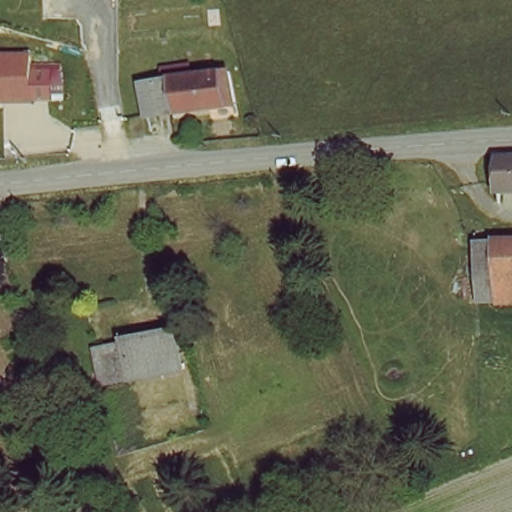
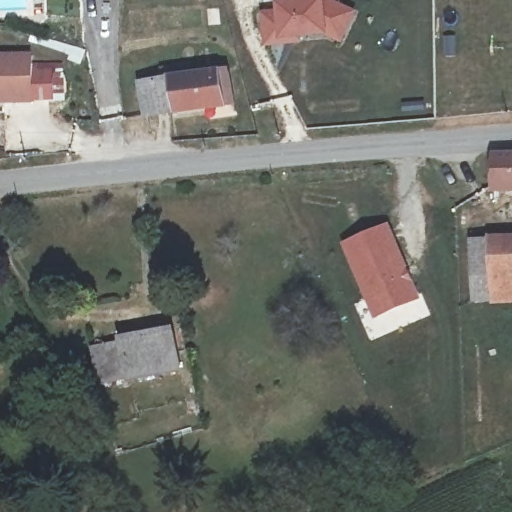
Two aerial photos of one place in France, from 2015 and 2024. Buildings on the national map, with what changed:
new [(320,36),(298,41),(298,44),(265,48),(260,13),(277,10),(277,3),(290,2),(290,0),(329,0),(356,13),(341,43),(320,36)]
unchanged [(33,53),(33,66),(55,66),(55,105),(0,105),(0,53),(33,53)]
unchanged [(149,115),(148,86),(220,84),(221,112),(149,115)]
unchanged [(499,201),(496,161),(507,161),(512,161),(512,200),(499,201)]
new [(388,221),(423,299),(373,320),(340,245),(388,221)]
unchanged [(512,242),(512,312),(493,314),(492,305),(471,304),(467,245),(512,242)]
unchanged [(184,371),(106,387),(97,352),(176,337),(178,347),(181,358),(184,371)]

